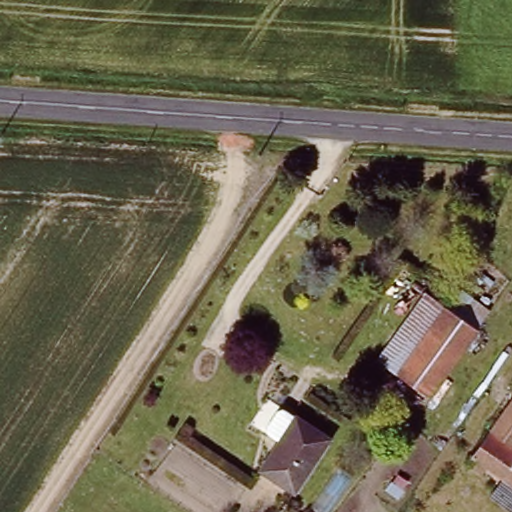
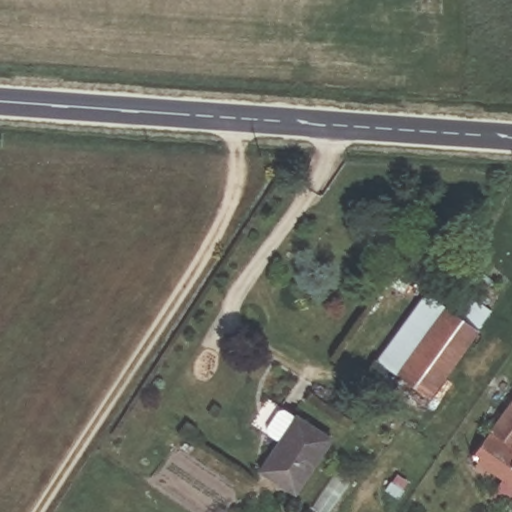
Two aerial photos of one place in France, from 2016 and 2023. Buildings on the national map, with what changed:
unchanged [(420,290),(440,302),(457,282),(485,304),(473,326),(428,388),(369,356),(420,290)]
unchanged [(470,452),(512,393),(512,482),(470,452)]
unchanged [(290,490),(257,467),(290,416),(324,438),(290,490)]

